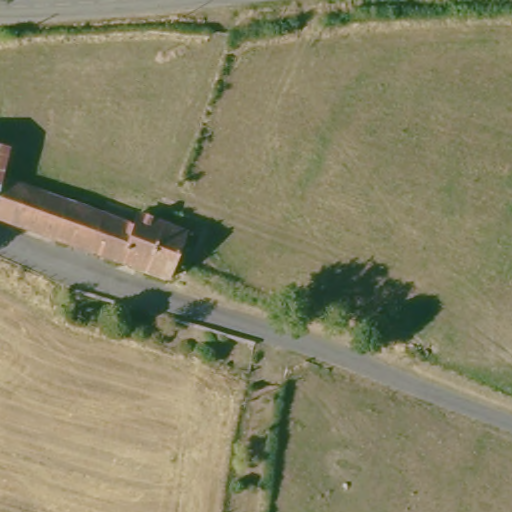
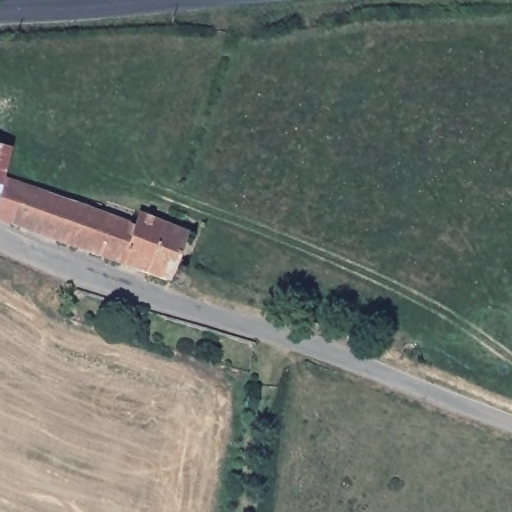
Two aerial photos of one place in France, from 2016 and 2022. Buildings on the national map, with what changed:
unchanged [(10,169),(7,181),(1,209),(0,208),(0,148),(13,151),(10,169)]
unchanged [(1,209),(7,181),(55,199),(41,241),(0,224),(0,208),(1,209)]
unchanged [(101,215),(85,256),(41,241),(55,199),(101,215)]
unchanged [(140,230),(125,270),(85,256),(101,215),(140,230)]
unchanged [(164,284),(125,270),(140,230),(144,219),(163,226),(192,235),(180,267),(174,287),(164,284)]

